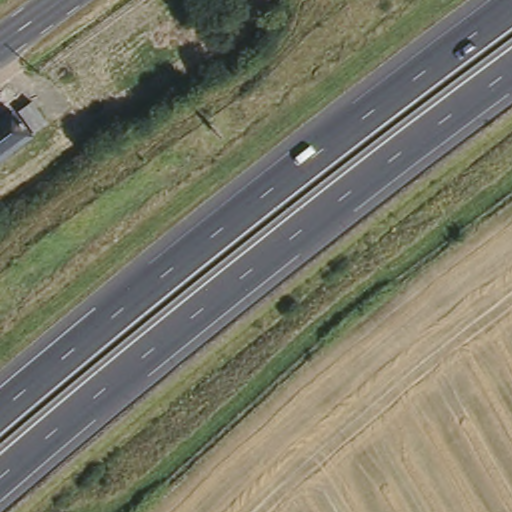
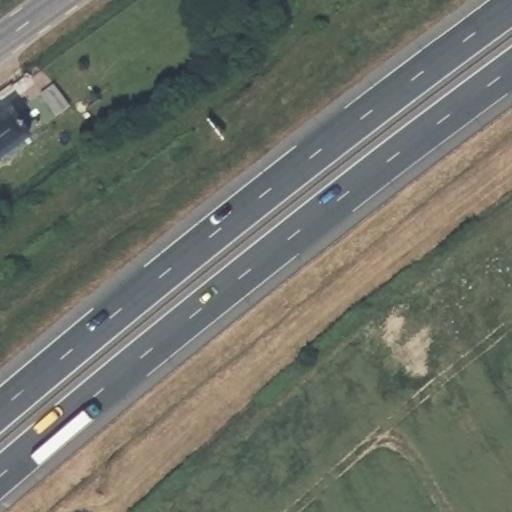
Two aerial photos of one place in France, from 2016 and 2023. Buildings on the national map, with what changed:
unchanged [(31,141),(0,165),(0,128),(14,118),(31,141)]

